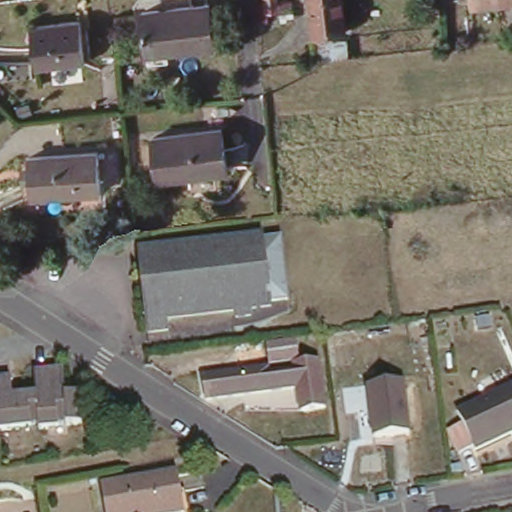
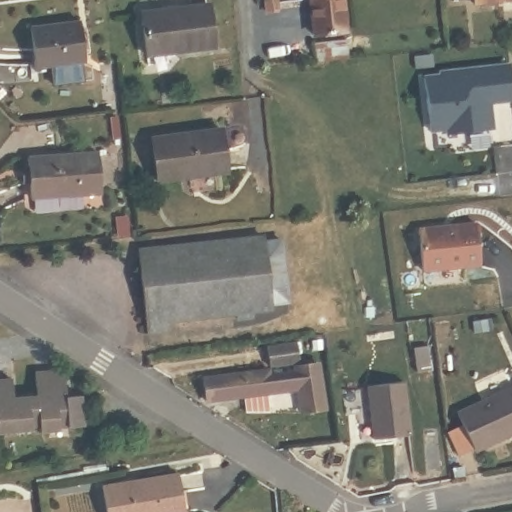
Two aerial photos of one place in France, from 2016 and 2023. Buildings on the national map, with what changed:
unchanged [(269,7),(267,0),(279,0),(280,5),(282,13),(270,16),(269,7)]
unchanged [(344,0),(344,2),(310,7),(309,0),(344,0)]
unchanged [(460,0),(469,0),(460,2),(460,0)]
unchanged [(475,5),(475,0),(512,0),(501,1),(475,5)]
unchanged [(348,34),(313,39),(310,7),(344,2),(348,34)]
unchanged [(211,6),(214,47),(149,53),(146,12),(211,6)]
unchanged [(82,22),(86,62),(36,67),(31,27),(82,22)]
new [(508,62),(512,100),(489,102),(491,130),(446,135),(444,127),(427,130),(418,72),(508,62)]
unchanged [(224,130),(230,171),(162,180),(157,139),(224,130)]
unchanged [(95,153),(102,192),(34,201),(28,163),(95,153)]
new [(474,223),(477,264),(419,267),(416,227),(474,223)]
unchanged [(138,250),(265,236),(265,241),(281,237),(289,302),(272,305),(273,311),(253,312),(253,320),(235,321),(234,315),(170,320),(171,328),(145,331),(138,250)]
unchanged [(300,391),(209,401),(206,378),(266,371),(266,375),(294,371),(293,367),(293,364),(320,360),(330,406),(305,411),(300,391)]
unchanged [(62,425),(63,442),(41,440),(38,428),(0,436),(0,381),(15,382),(16,397),(37,397),(38,372),(66,370),(68,395),(84,393),(88,427),(62,425)]
unchanged [(401,377),(409,428),(374,433),(367,381),(401,377)]
unchanged [(459,413),(512,387),(512,436),(478,452),(459,413)]
unchanged [(182,478),(187,512),(109,512),(106,490),(182,478)]

